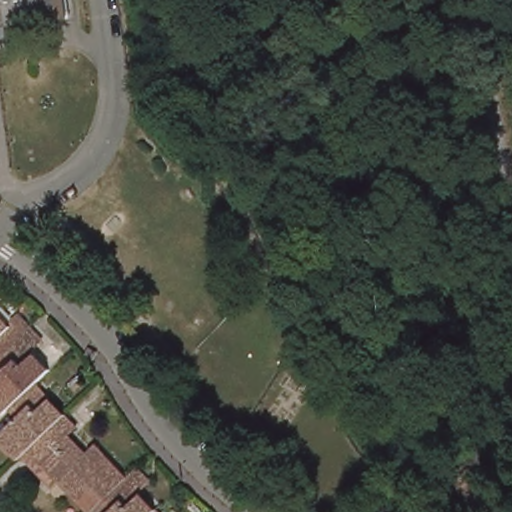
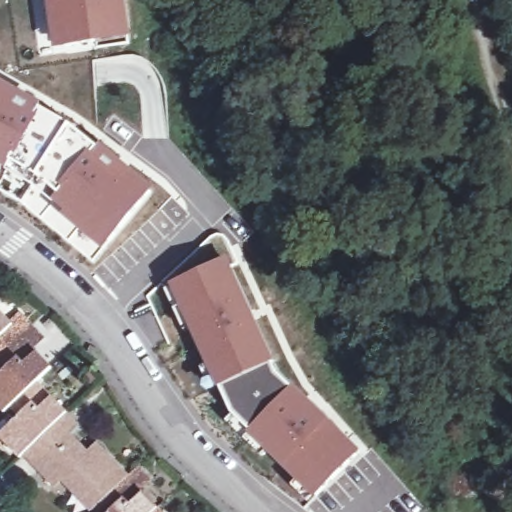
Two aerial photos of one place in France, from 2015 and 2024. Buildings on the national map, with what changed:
demolished [(0,0),(73,0),(75,16),(13,24),(15,38),(0,40),(0,0)]
new [(66,49),(60,0),(125,0),(131,41),(66,49)]
new [(153,195),(94,264),(20,203),(0,191),(0,86),(74,128),(153,195)]
new [(228,259),(281,374),(295,389),(363,454),(316,502),(248,434),(251,432),(231,414),(218,390),(172,286),(228,259)]
unchanged [(56,328),(44,340),(61,358),(48,369),(79,403),(68,412),(100,448),(113,436),(144,471),(151,464),(163,477),(151,488),(174,512),(97,512),(35,446),(25,454),(4,432),(23,416),(10,403),(5,407),(0,401),(0,374),(6,368),(0,360),(0,299),(3,296),(23,317),(35,305),(56,328)]
unchanged [(97,361),(88,357),(93,347),(101,351),(97,361)]

